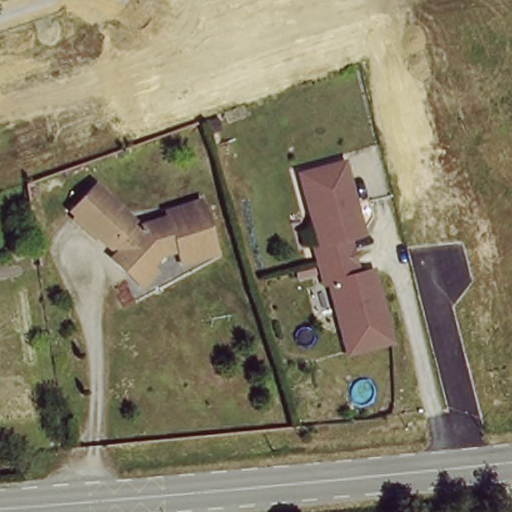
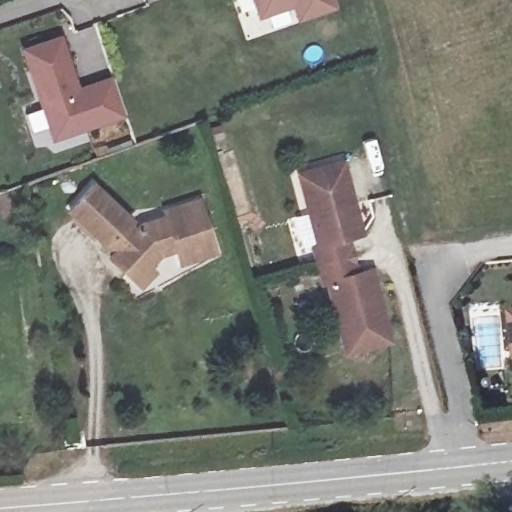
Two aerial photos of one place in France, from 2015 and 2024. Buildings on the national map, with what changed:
new [(322,5),(287,17),(282,2),(247,14),(243,0),(320,0),(322,5)]
new [(52,39),(70,91),(107,79),(118,115),(47,139),(17,51),(52,39)]
unchanged [(342,165),(362,227),(355,228),(358,237),(350,239),(355,257),(360,275),(368,272),(370,280),(371,281),(377,279),(395,341),(375,347),(352,354),(331,285),(327,286),(321,267),(320,266),(315,249),(320,247),(299,177),(342,165)]
unchanged [(97,194),(135,227),(131,230),(140,237),(145,230),(170,224),(169,218),(203,209),(210,231),(219,260),(215,261),(187,268),(183,256),(164,261),(152,272),(145,267),(132,281),(115,264),(120,260),(75,217),(97,194)]
new [(512,320),(512,361),(508,321),(512,320)]

